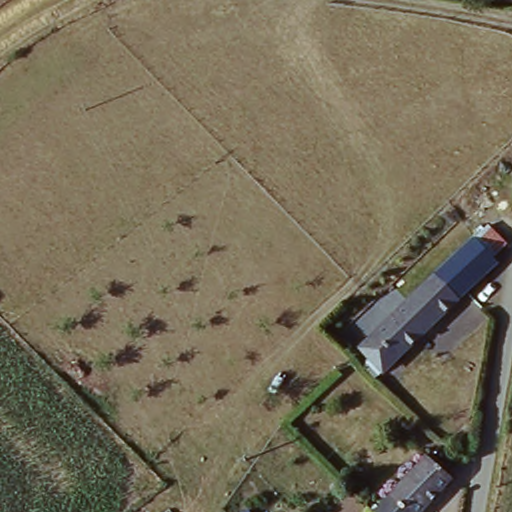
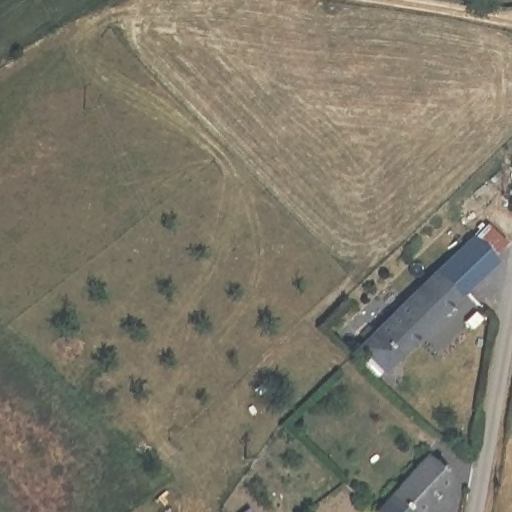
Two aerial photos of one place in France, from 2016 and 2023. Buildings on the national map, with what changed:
unchanged [(388,367),(367,346),(398,316),(452,262),(475,241),(492,225),(507,238),(491,256),(497,261),(388,367)]
unchanged [(458,481),(426,512),(379,512),(434,457),(458,481)]
unchanged [(250,512),(243,512),(247,509),(250,512)]

